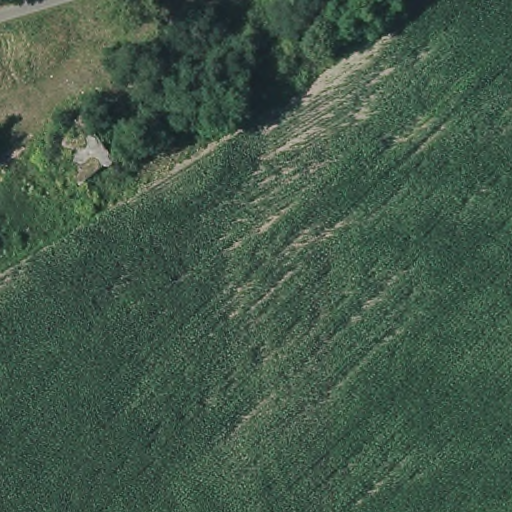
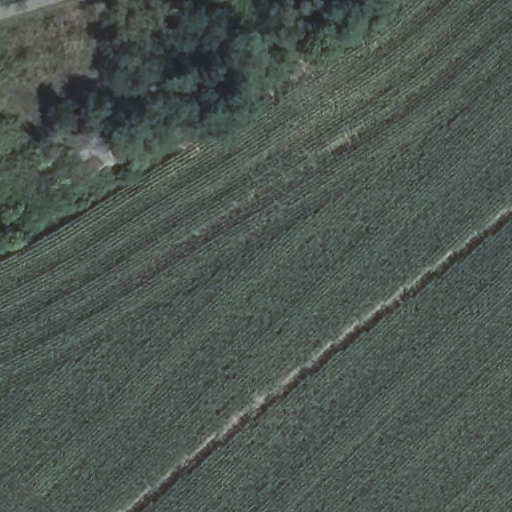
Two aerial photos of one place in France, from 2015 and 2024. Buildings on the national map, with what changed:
unchanged [(111,157),(73,183),(46,150),(83,121),(111,157)]

